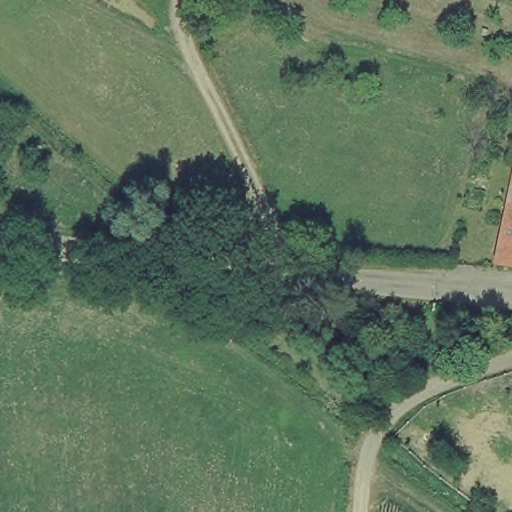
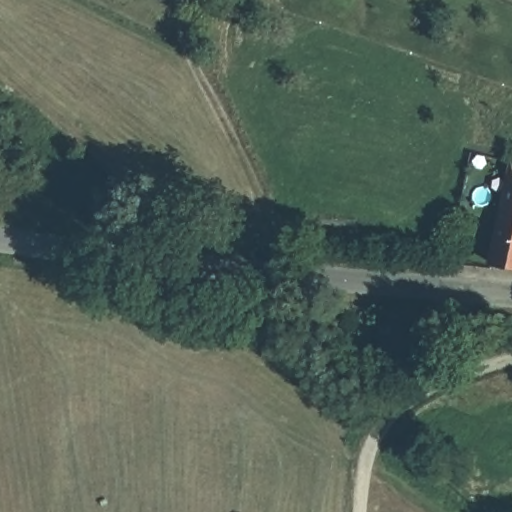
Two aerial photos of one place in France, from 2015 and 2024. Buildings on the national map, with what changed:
unchanged [(504,201),(510,179),(512,179),(512,265),(492,260),(504,201)]

